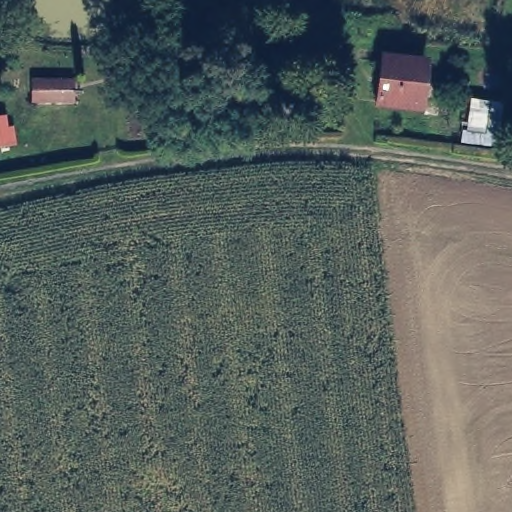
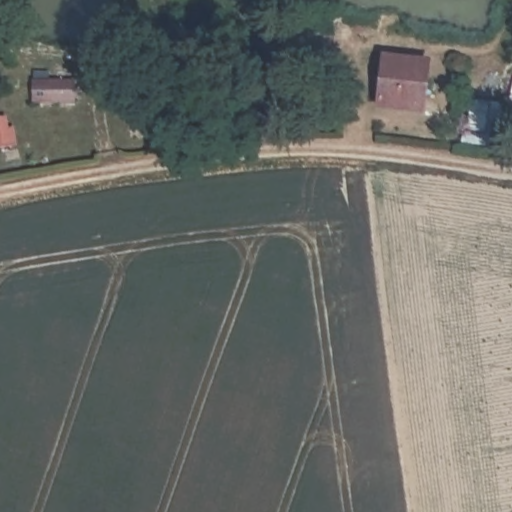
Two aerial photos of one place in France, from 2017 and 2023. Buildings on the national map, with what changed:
unchanged [(419,63),(419,76),(425,76),(424,106),(389,102),(391,63),(419,63)]
unchanged [(66,101),(58,102),(28,102),(28,81),(58,82),(67,82),(66,101)]

